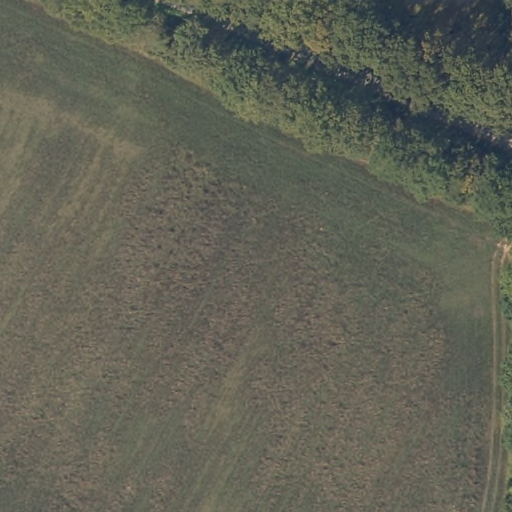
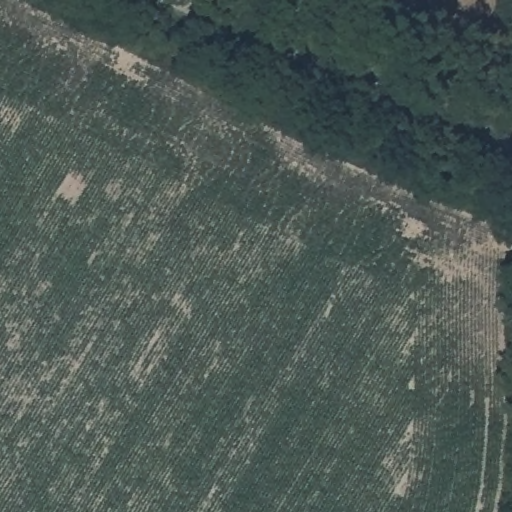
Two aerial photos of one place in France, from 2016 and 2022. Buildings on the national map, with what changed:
[]

